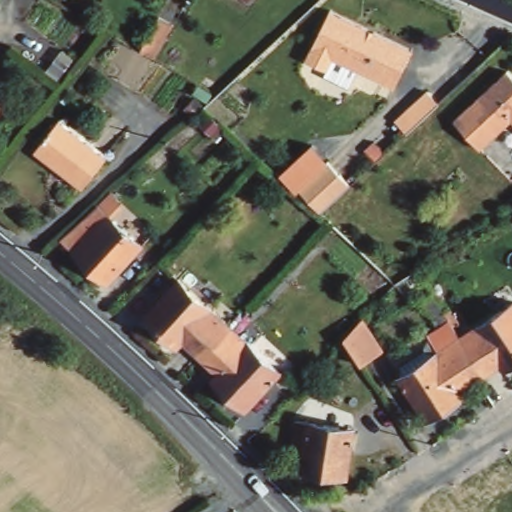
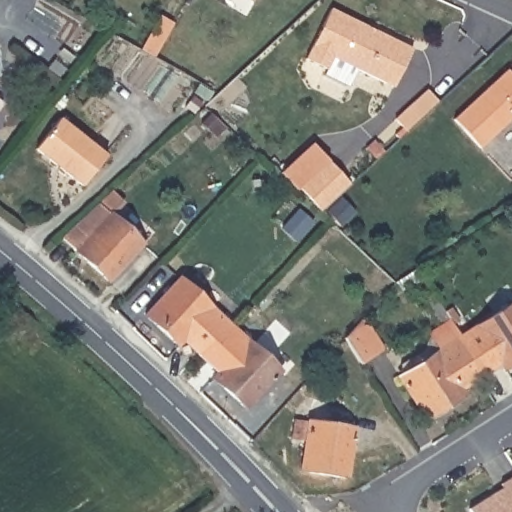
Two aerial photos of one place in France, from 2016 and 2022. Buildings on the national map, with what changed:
unchanged [(249,0),(253,0),(252,1),(249,0)]
unchanged [(166,16),(147,50),(132,42),(152,8),(166,16)]
unchanged [(326,74),(329,68),(307,57),(328,8),(414,46),(396,86),(358,69),(350,86),(326,74)]
unchanged [(512,121),(511,120),(481,149),(455,120),(505,71),(512,78),(512,121)]
unchanged [(395,118),(425,88),(437,100),(423,113),(406,130),(395,118)]
unchanged [(56,118),(102,155),(79,185),(33,148),(56,118)]
unchanged [(348,184),(321,209),(301,189),(296,193),(279,175),(312,143),(348,184)]
unchanged [(95,202),(141,249),(106,284),(58,238),(95,202)]
unchanged [(178,339),(172,345),(140,313),(174,278),(229,330),(220,339),(214,333),(194,355),(178,339)]
unchanged [(512,304),(512,359),(500,368),(495,361),(473,374),(461,354),(468,348),(460,334),(510,301),(512,304)]
unchanged [(385,350),(361,366),(344,337),(363,318),(385,350)]
unchanged [(214,333),(220,339),(229,330),(275,373),(241,410),(207,377),(212,372),(194,355),(214,333)]
unchanged [(460,334),(468,348),(461,354),(473,374),(455,386),(460,394),(422,418),(393,377),(460,334)]
unchanged [(292,445),(296,422),(355,431),(346,481),(300,475),(303,446),(292,445)]
new [(497,484),(512,475),(512,512),(468,512),(466,509),(493,491),(500,487),(497,484)]

